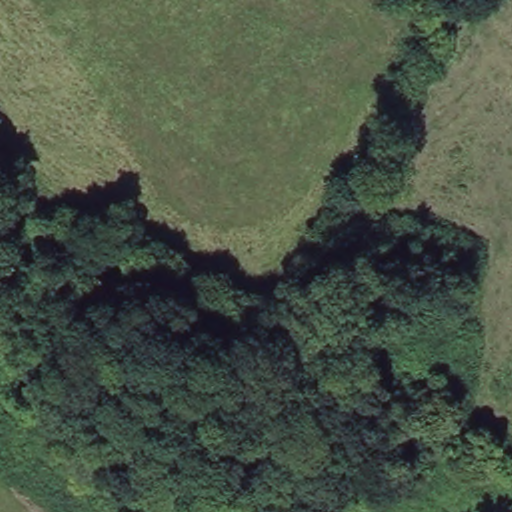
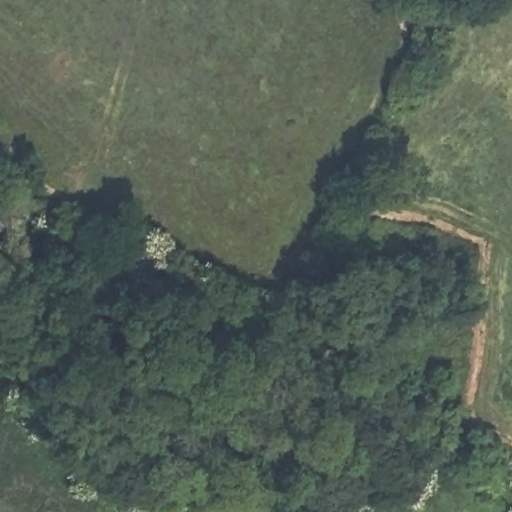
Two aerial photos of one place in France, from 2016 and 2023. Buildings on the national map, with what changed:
[]

